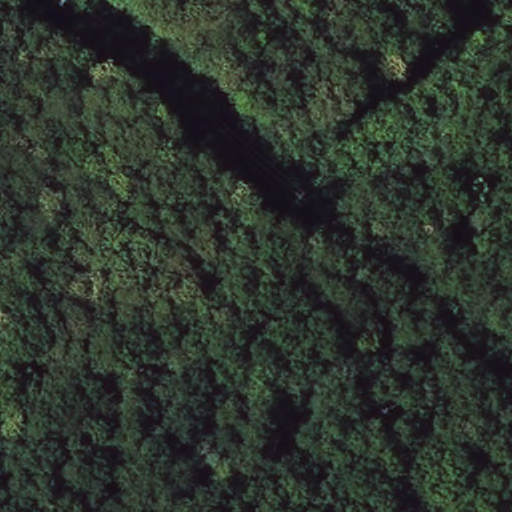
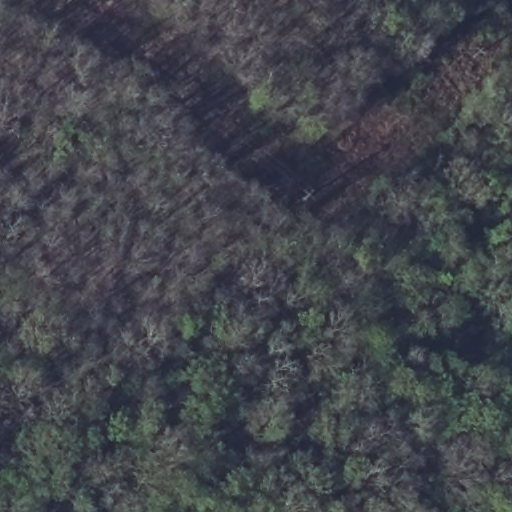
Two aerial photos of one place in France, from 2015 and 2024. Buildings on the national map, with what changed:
[]

